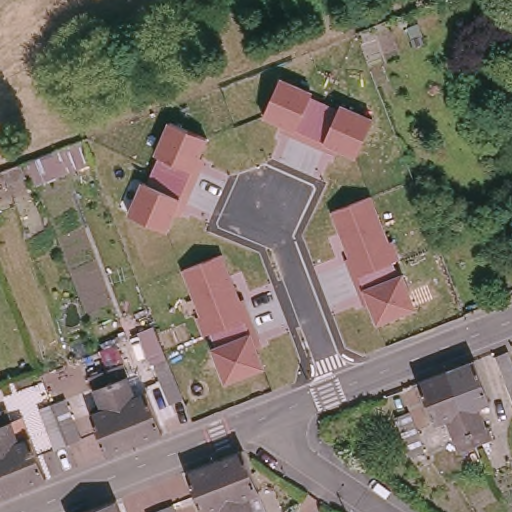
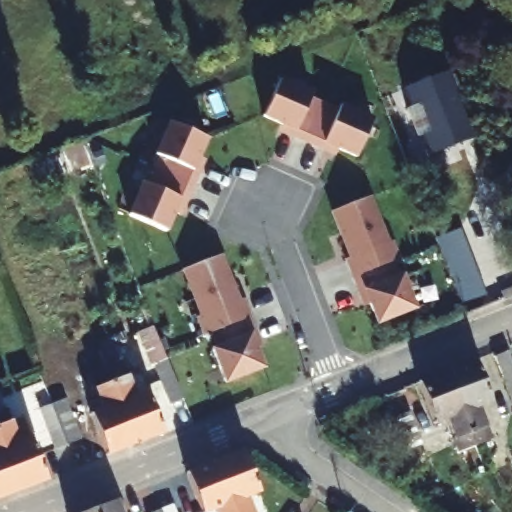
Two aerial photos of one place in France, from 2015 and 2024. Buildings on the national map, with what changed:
new [(417,140),(430,134),(418,105),(407,110),(400,91),(449,71),(477,138),(427,156),(417,140)]
unchanged [(277,76),(369,118),(350,158),(259,116),(277,76)]
unchanged [(163,119),(205,139),(165,228),(123,208),(163,119)]
unchanged [(410,307),(368,323),(326,212),(370,196),(410,307)]
new [(435,240),(460,229),(486,295),(460,304),(435,240)]
unchanged [(221,255),(264,363),(217,380),(175,271),(221,255)]
unchanged [(512,362),(512,405),(494,357),(508,352),(512,362)]
unchanged [(469,355),(486,398),(473,403),(486,435),(470,441),(441,366),(469,355)]
unchanged [(182,401),(168,403),(153,365),(167,360),(182,401)]
unchanged [(455,447),(442,415),(430,419),(414,377),(441,366),(470,441),(455,447)]
unchanged [(123,367),(135,398),(145,394),(161,435),(134,446),(107,373),(123,367)]
unchanged [(104,457),(90,415),(100,411),(90,379),(107,373),(134,446),(104,457)]
unchanged [(35,410),(50,404),(60,401),(74,441),(65,444),(51,449),(35,410)]
unchanged [(424,451),(412,456),(397,416),(408,412),(424,451)]
unchanged [(17,443),(30,439),(45,480),(16,492),(0,450),(0,415),(5,413),(17,443)]
unchanged [(238,445),(254,487),(243,492),(252,512),(232,512),(210,457),(238,445)]
unchanged [(0,450),(16,492),(0,498),(0,450)]
unchanged [(210,505),(198,509),(181,468),(210,457),(232,512),(213,512),(210,505)]
unchanged [(92,509),(116,500),(121,512),(94,512),(92,509)]
unchanged [(161,510),(173,505),(176,512),(156,512),(161,510)]
unchanged [(92,509),(94,512),(85,512),(92,509)]

